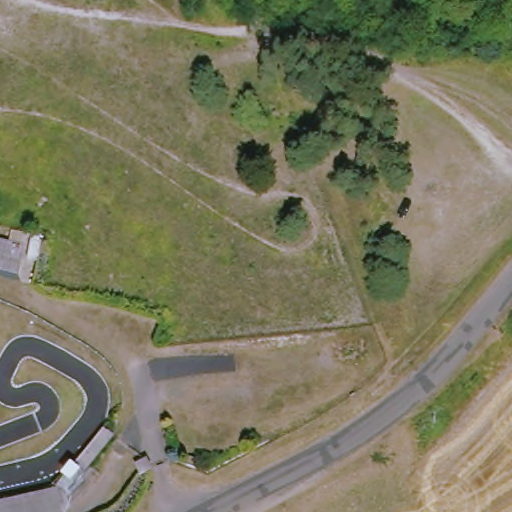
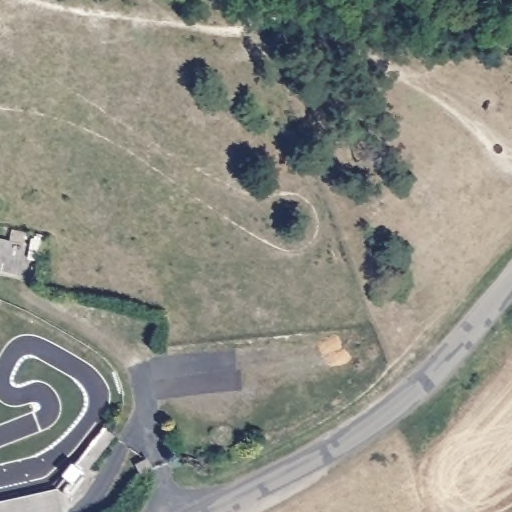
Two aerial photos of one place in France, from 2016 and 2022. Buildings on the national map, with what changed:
unchanged [(17,232),(47,239),(42,263),(27,257),(24,276),(0,271),(0,238),(13,241),(17,232)]
unchanged [(110,427),(120,436),(75,501),(72,512),(0,512),(0,498),(63,487),(110,427)]

